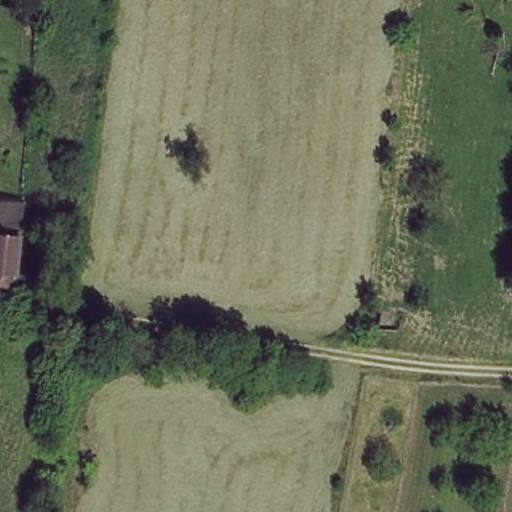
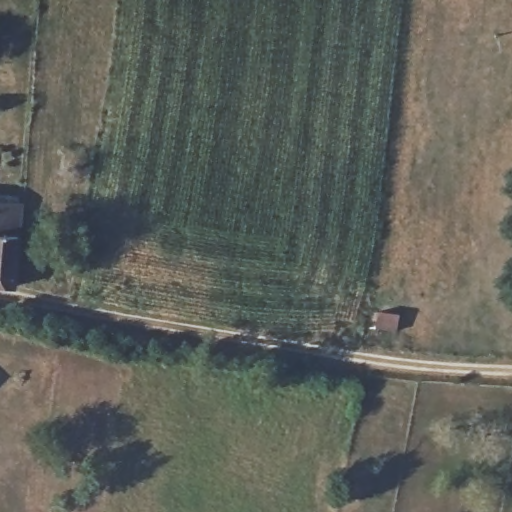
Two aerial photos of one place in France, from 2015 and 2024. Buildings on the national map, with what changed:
unchanged [(4,288),(0,288),(0,203),(21,205),(20,216),(15,290),(4,288)]

